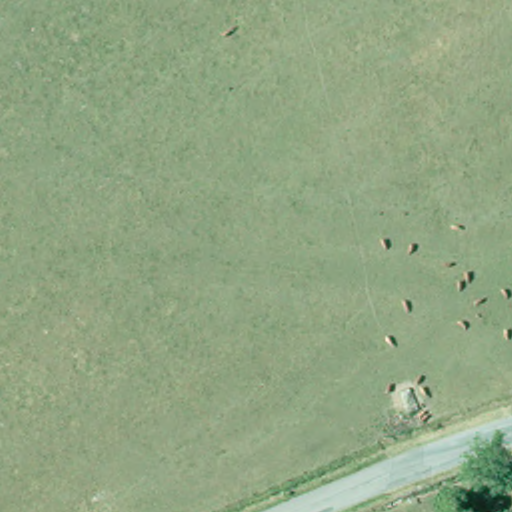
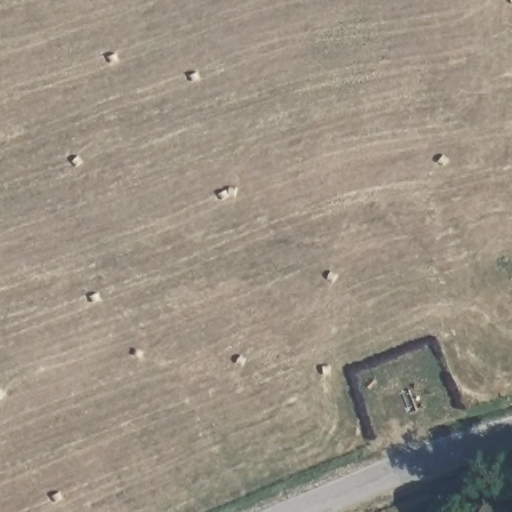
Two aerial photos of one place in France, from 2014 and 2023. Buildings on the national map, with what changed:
unchanged [(399,394),(410,389),(418,411),(407,415),(399,394)]

